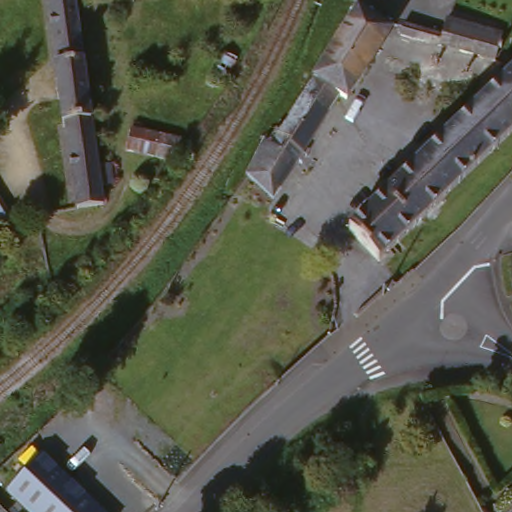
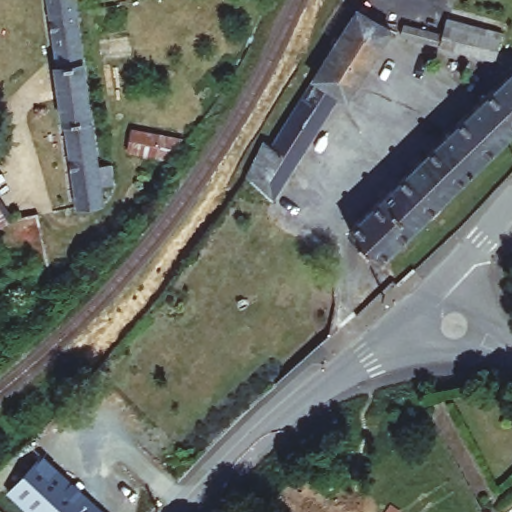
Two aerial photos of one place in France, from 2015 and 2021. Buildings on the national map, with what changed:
unchanged [(54,61),(45,0),(71,0),(101,206),(84,209),(76,211),(64,130),(60,128),(51,63),(54,61)]
unchanged [(296,163),(269,200),(242,180),(263,144),(268,146),(354,15),(385,33),(342,102),(337,99),(296,163)]
unchanged [(494,45),(483,72),(393,36),(397,28),(435,41),(442,27),(494,45)]
unchanged [(354,232),(512,81),(512,138),(384,261),(354,232)]
unchanged [(124,127),(181,139),(162,164),(120,152),(124,127)]
unchanged [(99,512),(22,512),(4,496),(39,458),(99,512)]

